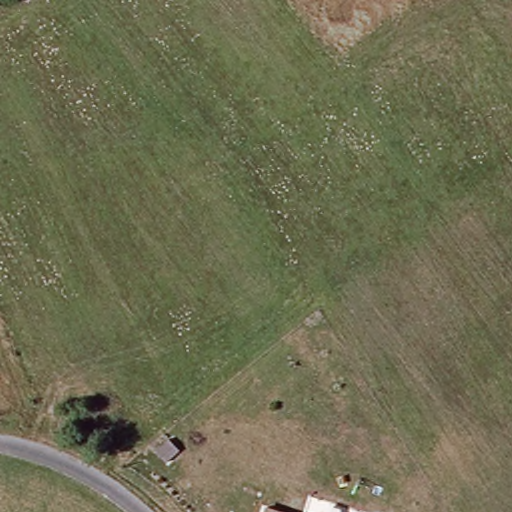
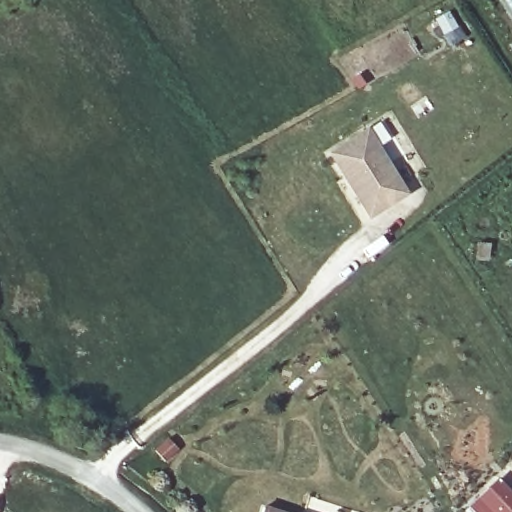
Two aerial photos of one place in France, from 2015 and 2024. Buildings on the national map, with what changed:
new [(327,154),(366,128),(408,195),(368,220),(327,154)]
new [(512,491),(512,512),(472,512),(466,506),(497,477),(512,491)]
unchanged [(291,512),(262,512),(265,503),(291,512)]

